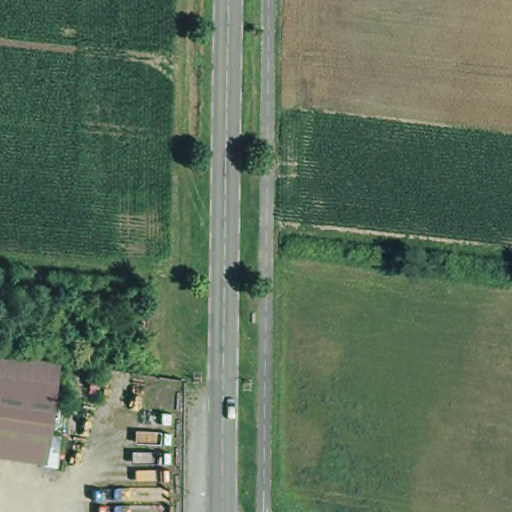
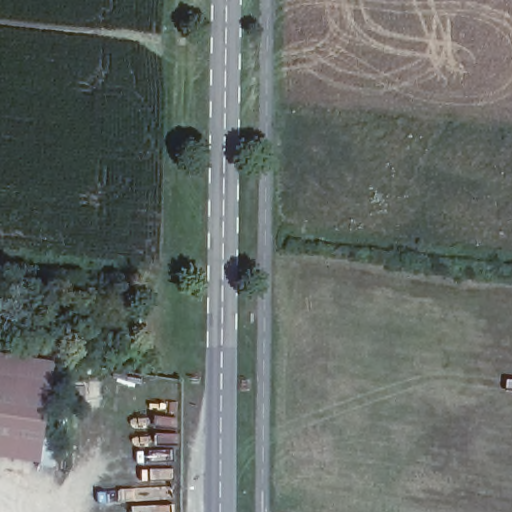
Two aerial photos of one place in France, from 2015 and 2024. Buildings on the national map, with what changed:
unchanged [(49,403),(0,395),(0,348),(56,357),(49,403)]
unchanged [(39,457),(0,451),(0,395),(49,403),(39,457)]

